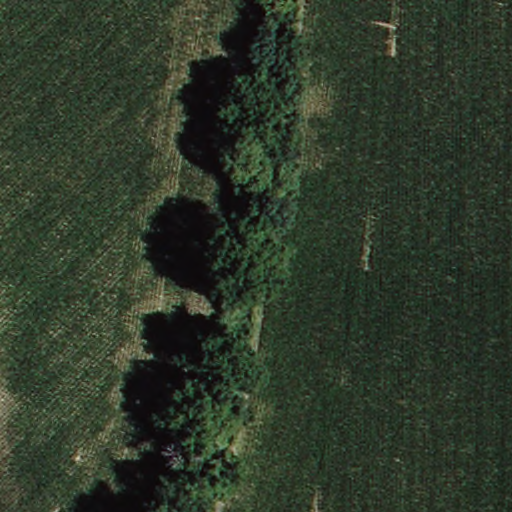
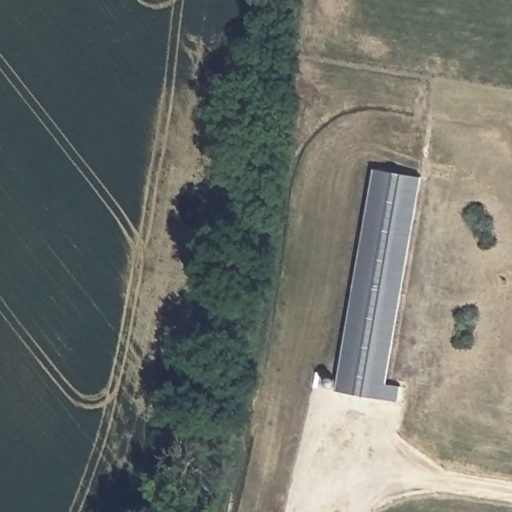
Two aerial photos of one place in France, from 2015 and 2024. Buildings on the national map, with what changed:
new [(374,167),(425,176),(388,383),(403,386),(401,400),(336,389),(374,167)]

